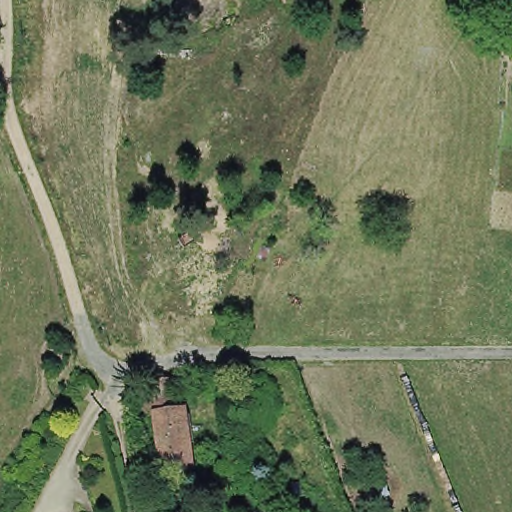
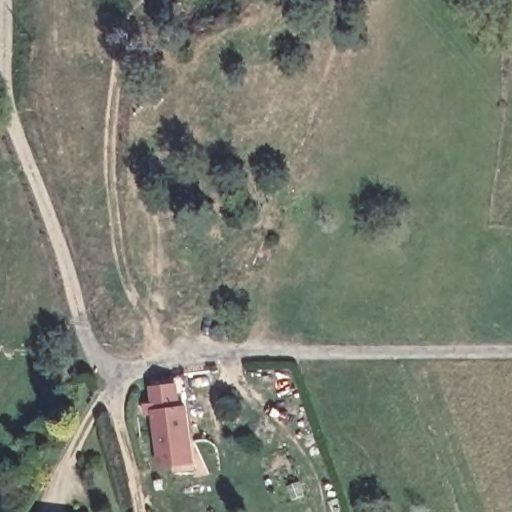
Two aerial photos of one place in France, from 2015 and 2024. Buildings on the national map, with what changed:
unchanged [(179,468),(164,471),(157,420),(153,387),(167,386),(173,385),(177,418),(187,417),(192,467),(194,481),(180,482),(179,468)]

